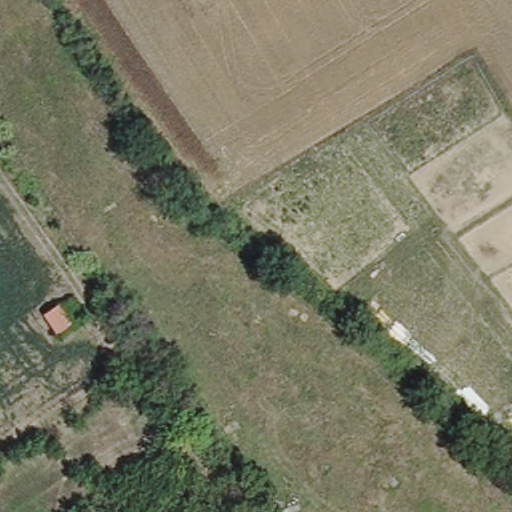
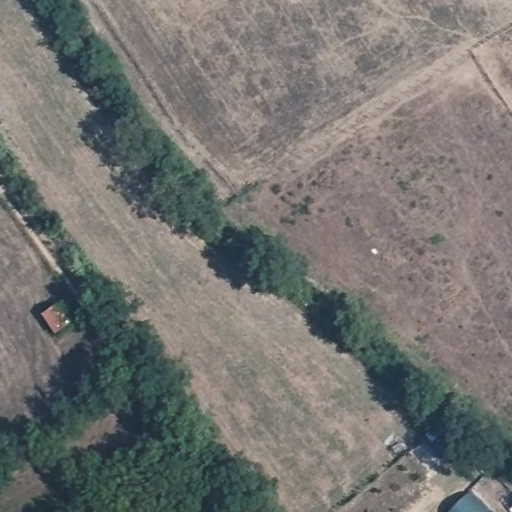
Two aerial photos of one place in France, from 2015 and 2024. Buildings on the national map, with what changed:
unchanged [(48,315),(61,304),(75,321),(62,331),(48,315)]
new [(491,512),(452,512),(471,492),(491,512)]

